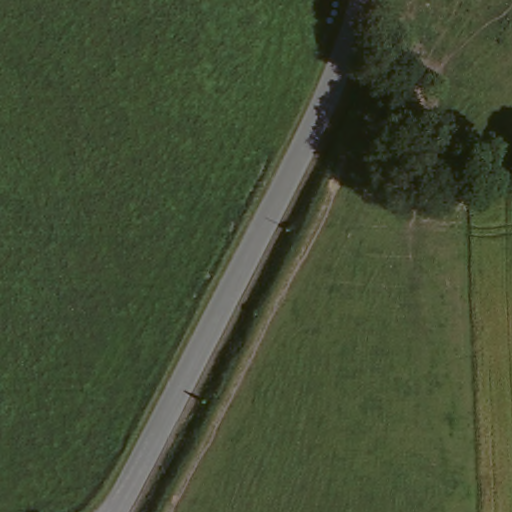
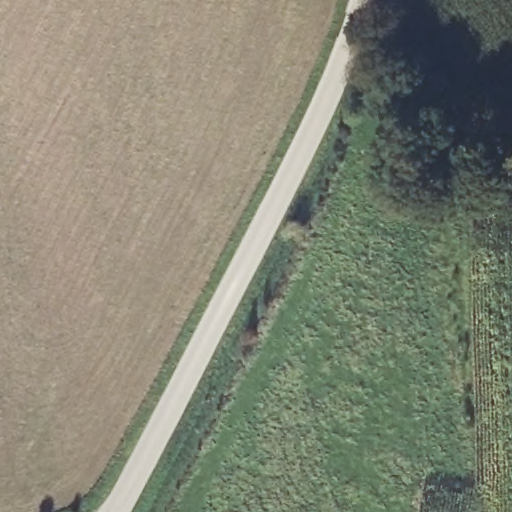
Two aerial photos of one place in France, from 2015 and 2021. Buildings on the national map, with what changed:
[]

